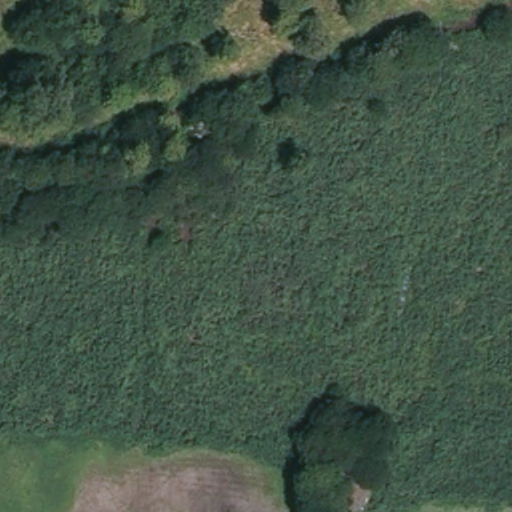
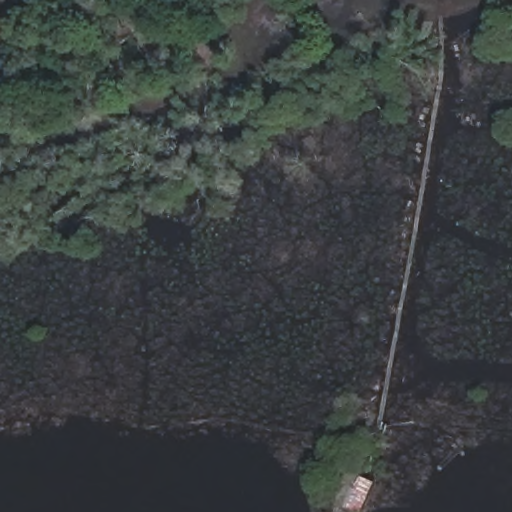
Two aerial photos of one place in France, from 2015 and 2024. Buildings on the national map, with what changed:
unchanged [(346,471),(375,486),(363,512),(346,512),(325,512),(346,471)]

